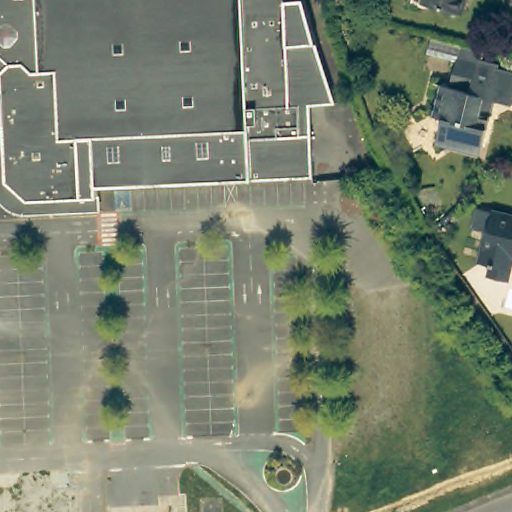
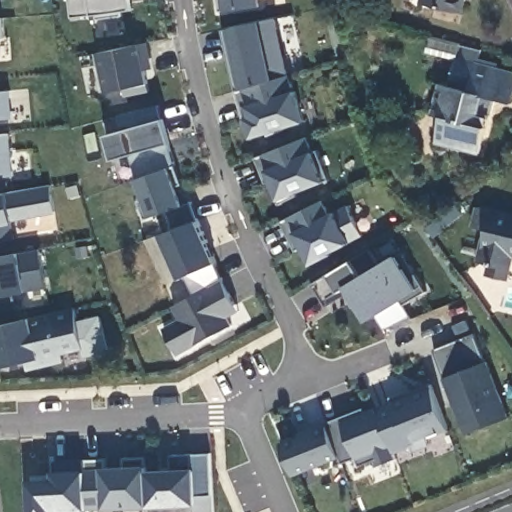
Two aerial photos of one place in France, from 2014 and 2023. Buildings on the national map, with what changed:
demolished [(306,2),(321,54),(338,106),(314,108),(303,109),(304,137),(313,137),(315,137),(316,179),(116,189),(100,190),(101,199),(32,203),(12,184),(7,104),(0,104),(0,0),(289,0),(289,3),(306,2)]
new [(131,0),(132,9),(124,11),(121,16),(98,19),(99,14),(94,15),(73,17),(70,0),(131,0)]
new [(219,11),(218,0),(259,0),(260,6),(219,11)]
unchanged [(463,0),(460,11),(421,1),(421,0),(463,0)]
new [(3,16),(4,36),(0,36),(0,16),(3,16)]
new [(227,50),(223,30),(230,28),(234,49),(230,28),(275,18),(287,75),(243,89),(236,91),(227,50)]
new [(154,68),(145,70),(148,83),(150,92),(125,97),(122,88),(105,93),(96,54),(148,43),(154,68)]
unchanged [(512,74),(512,104),(498,101),(494,118),(483,156),(440,145),(446,121),(437,118),(446,87),(453,89),(465,48),(486,54),(483,66),(499,71),(512,74)]
new [(243,89),(287,75),(294,91),(304,122),(251,138),(245,118),(236,91),(243,89)]
new [(10,89),(12,116),(0,118),(0,90),(10,89)]
new [(228,318),(232,325),(178,355),(163,328),(179,319),(173,307),(193,295),(185,277),(179,278),(160,235),(179,229),(172,209),(150,217),(136,180),(133,153),(113,159),(106,135),(127,129),(117,117),(158,105),(163,119),(172,143),(175,165),(169,167),(184,205),(191,203),(198,221),(217,263),(222,280),(238,311),(228,318)]
new [(14,175),(0,178),(0,136),(10,135),(14,175)]
new [(306,137),(312,152),(317,150),(330,180),(325,181),(324,182),(296,193),(297,196),(280,204),(279,200),(270,181),(266,183),(256,158),(306,137)]
new [(54,213),(13,224),(15,238),(0,241),(0,194),(8,193),(49,184),(54,213)]
new [(322,201),(331,213),(335,212),(346,206),(363,237),(350,243),(311,266),(302,248),(297,250),(282,222),(322,201)]
unchanged [(492,269),(483,267),(490,236),(476,233),(481,213),(512,220),(512,274),(509,285),(489,280),(492,269)]
new [(39,248),(46,286),(13,292),(14,299),(0,302),(0,255),(39,248)]
new [(330,275),(352,262),(369,250),(378,267),(398,255),(399,258),(403,254),(425,292),(403,306),(408,315),(385,328),(377,316),(366,322),(346,289),(325,302),(314,285),(330,275)]
new [(31,318),(74,308),(78,321),(100,316),(108,353),(85,358),(83,349),(62,354),(64,363),(27,371),(28,361),(0,368),(0,325),(31,318)]
new [(474,334),(486,362),(509,418),(465,435),(442,379),(446,377),(434,350),(474,334)]
new [(363,409),(365,413),(392,401),(390,397),(407,391),(408,394),(430,385),(449,431),(409,445),(409,447),(392,454),(396,459),(376,466),(375,460),(360,465),(356,458),(342,463),(340,458),(294,476),(280,443),(363,409)]
new [(211,454),(214,512),(152,512),(152,508),(149,507),(147,471),(174,469),(170,455),(211,454)]
new [(149,507),(103,510),(86,510),(85,461),(105,459),(105,467),(124,466),(124,458),(146,457),(146,466),(147,471),(149,507)]

